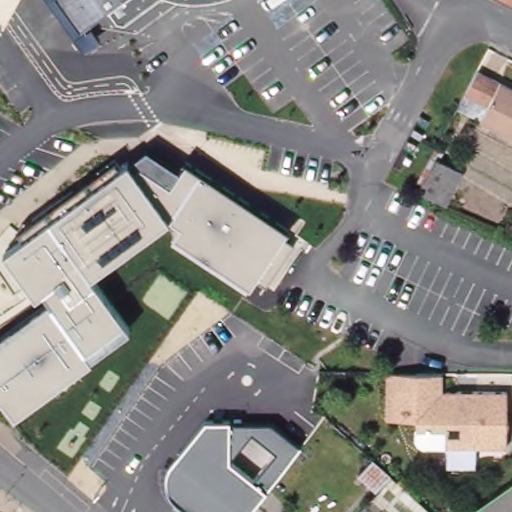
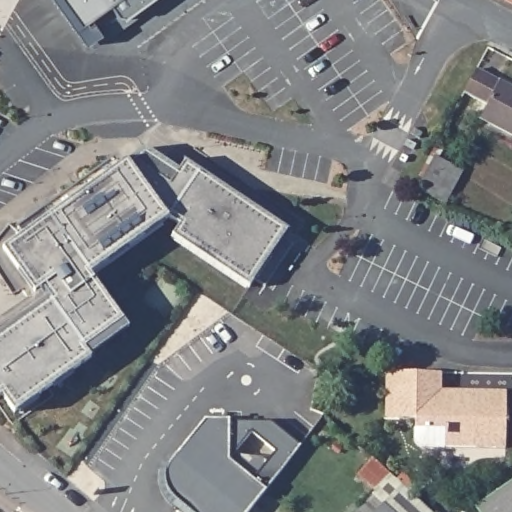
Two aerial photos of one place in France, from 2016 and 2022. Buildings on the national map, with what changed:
unchanged [(117,17),(109,6),(88,22),(80,27),(60,0),(151,0),(125,19),(117,17)]
unchanged [(512,0),(512,6),(501,0),(512,0)]
unchanged [(457,107),(457,106),(465,92),(476,71),(477,69),(512,87),(512,136),(480,120),(457,107)]
unchanged [(180,170),(186,163),(287,230),(283,238),(294,245),(265,288),(255,280),(249,289),(171,238),(179,226),(169,218),(90,276),(130,328),(89,358),(92,360),(13,414),(2,398),(0,399),(0,334),(47,299),(42,290),(34,295),(2,250),(127,160),(129,161),(147,148),(180,170)]
unchanged [(445,203),(441,201),(423,193),(427,186),(421,183),(435,156),(462,171),(445,203)]
unchanged [(409,372),(428,372),(443,372),(442,390),(507,391),(507,395),(507,447),(440,447),(423,446),(418,444),(417,439),(417,418),(387,418),(387,372),(409,372)]
unchanged [(250,512),(189,512),(179,503),(171,496),(169,493),(167,488),(165,484),(165,474),(167,467),(205,420),(231,420),(231,424),(272,423),(301,447),(250,512)]
unchanged [(395,478),(395,479),(395,481),(396,481),(397,481),(398,481),(433,512),(392,512),(373,494),(376,491),(358,474),(373,458),(391,474),(395,477),(395,478)]
unchanged [(475,507),(512,481),(512,512),(478,512),(475,507)]
unchanged [(373,494),(392,512),(357,512),(373,494)]

